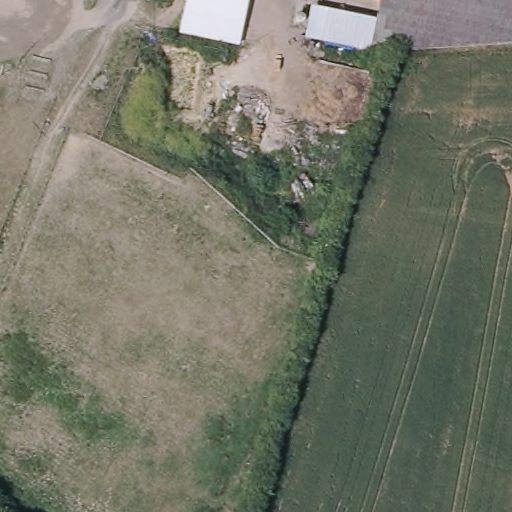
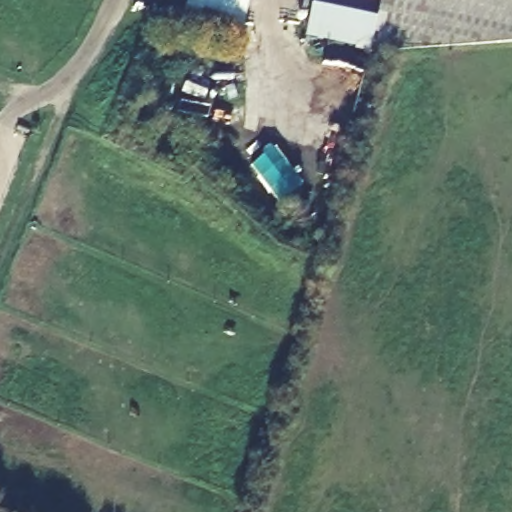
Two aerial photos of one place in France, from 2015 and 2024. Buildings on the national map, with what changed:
unchanged [(184,10),(186,0),(250,0),(245,22),(184,10)]
unchanged [(390,54),(372,56),(385,0),(512,0),(512,42),(390,54)]
unchanged [(304,40),(314,1),(380,17),(372,56),(304,40)]

